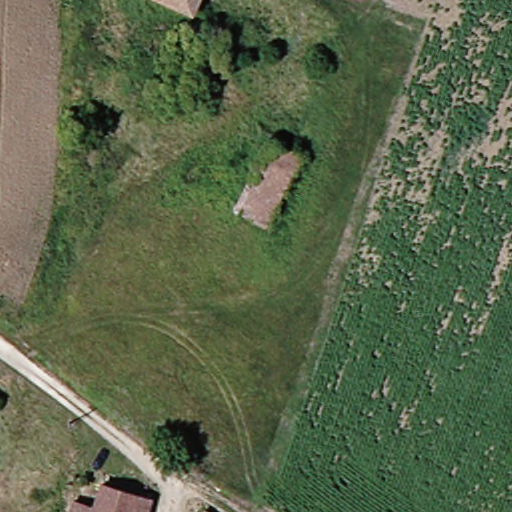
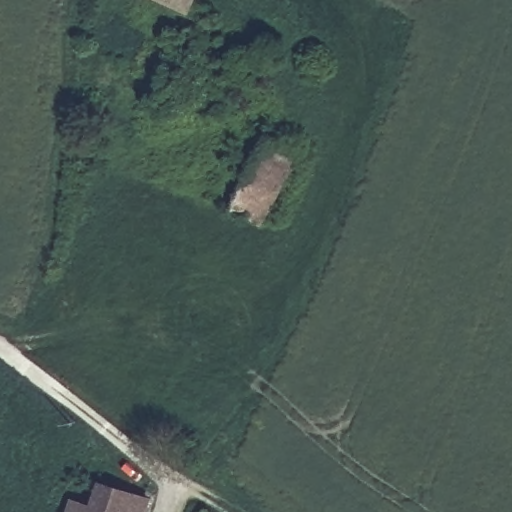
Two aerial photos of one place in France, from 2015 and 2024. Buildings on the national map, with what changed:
unchanged [(171,0),(191,0),(189,6),(171,0)]
unchanged [(259,136),(290,150),(260,224),(226,209),(259,136)]
unchanged [(65,498),(85,503),(91,480),(129,490),(143,496),(139,512),(61,512),(65,498)]
unchanged [(191,502),(204,512),(186,512),(191,502)]

